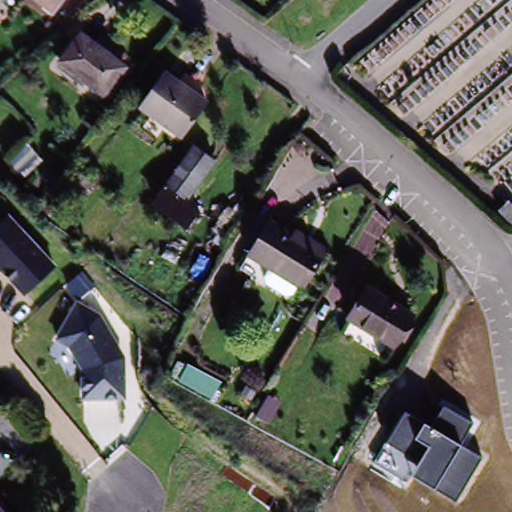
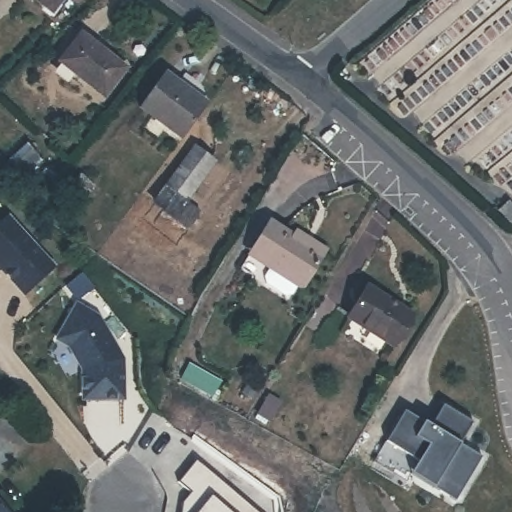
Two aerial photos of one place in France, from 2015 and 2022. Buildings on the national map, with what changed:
unchanged [(33,0),(63,0),(53,14),(33,0)]
unchanged [(79,34),(127,67),(108,94),(60,61),(79,34)]
unchanged [(181,137),(137,107),(162,72),(205,101),(181,137)]
unchanged [(30,136),(44,151),(24,169),(11,155),(30,136)]
unchanged [(185,223),(153,197),(164,182),(194,145),(215,161),(185,199),(197,210),(185,223)]
unchanged [(0,272),(0,221),(5,215),(56,268),(25,298),(0,272)]
unchanged [(299,234),(302,229),(329,244),(307,281),(304,278),(300,283),(290,286),(273,275),(271,264),(274,260),(252,247),(269,216),(299,234)]
unchanged [(414,308),(395,341),(350,314),(370,281),(414,308)]
unchanged [(81,400),(82,371),(67,347),(55,340),(78,301),(101,316),(127,362),(127,400),(81,400)]
unchanged [(433,486),(412,474),(419,462),(385,442),(404,411),(429,426),(444,405),(473,423),(461,444),(482,457),(455,501),(433,486)]
new [(195,463),(260,512),(181,512),(182,508),(190,497),(177,488),(195,463)]
unchanged [(14,512),(0,512),(0,494),(14,512)]

